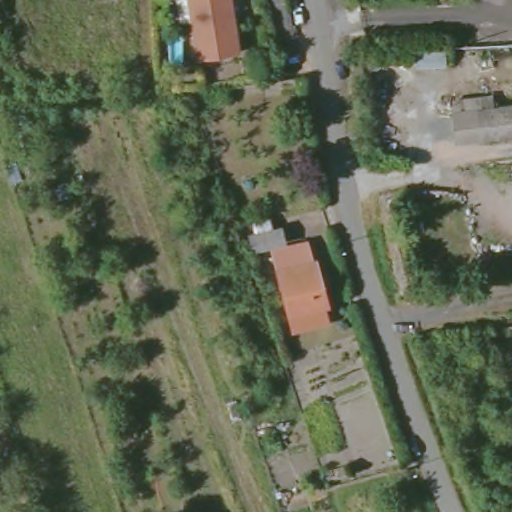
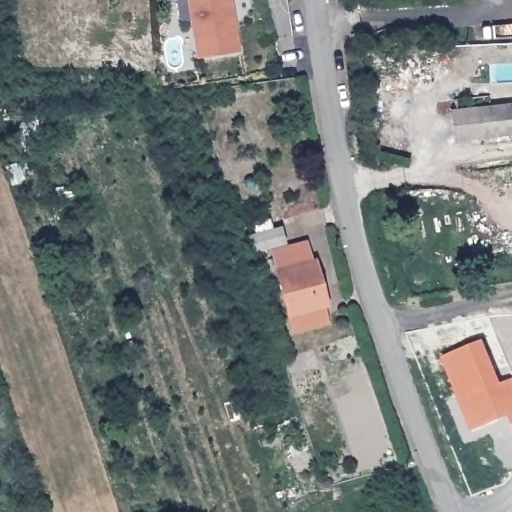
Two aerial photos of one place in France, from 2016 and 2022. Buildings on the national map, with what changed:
unchanged [(188,0),(229,0),(237,52),(196,58),(188,0)]
unchanged [(459,97),(512,100),(512,131),(457,127),(459,97)]
unchanged [(244,231),(275,224),(279,239),(248,246),(244,231)]
unchanged [(276,282),(266,246),(301,237),(305,256),(309,255),(314,273),(319,292),(322,301),(317,302),(322,318),(287,327),(276,282)]
new [(484,338),(502,381),(512,378),(512,423),(510,424),(505,415),(469,431),(440,357),(484,338)]

